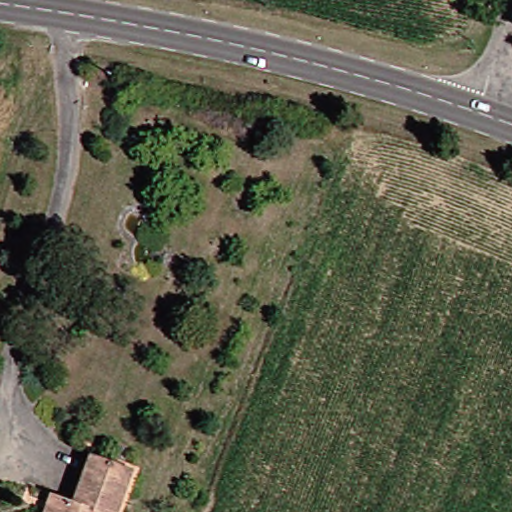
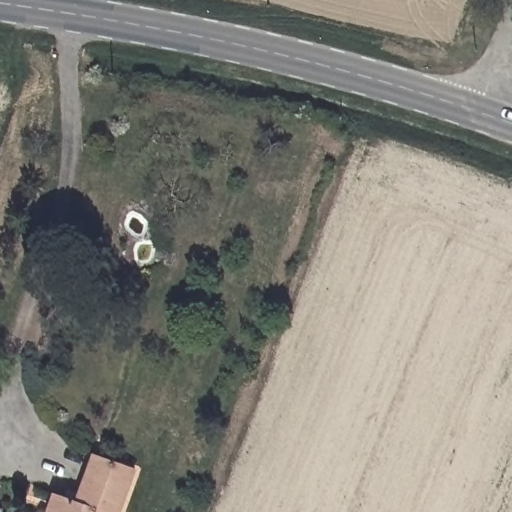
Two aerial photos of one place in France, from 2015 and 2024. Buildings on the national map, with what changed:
unchanged [(65,495),(81,501),(97,457),(137,471),(123,512),(49,512),(56,492),(65,495)]

